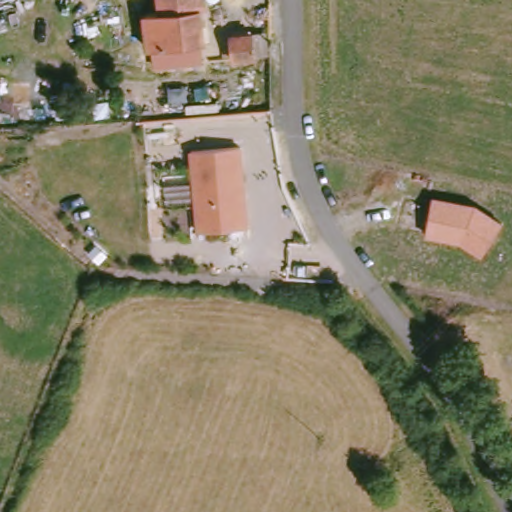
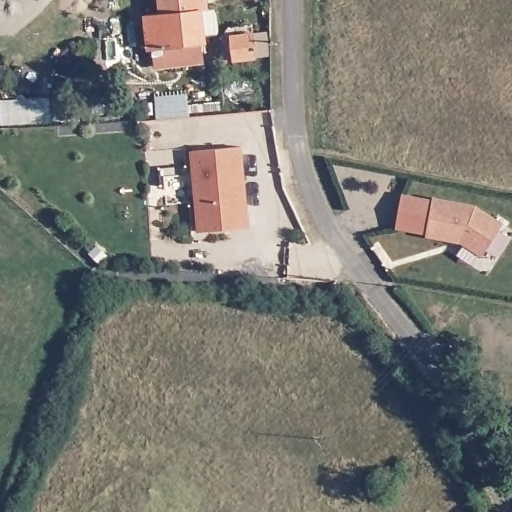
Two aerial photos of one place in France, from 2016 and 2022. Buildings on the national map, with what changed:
unchanged [(162,68),(158,50),(155,50),(150,15),(165,12),(163,0),(204,0),(210,42),(205,43),(208,59),(162,68)]
unchanged [(260,33),(261,40),(269,39),(271,49),(262,51),(263,56),(242,60),(239,35),(260,33)]
unchanged [(189,147),(241,143),(249,222),(197,228),(189,147)]
new [(397,230),(402,193),(432,198),(432,199),(426,236),(397,230)]
unchanged [(476,205),(502,223),(481,257),(460,244),(426,236),(432,198),(476,205)]

